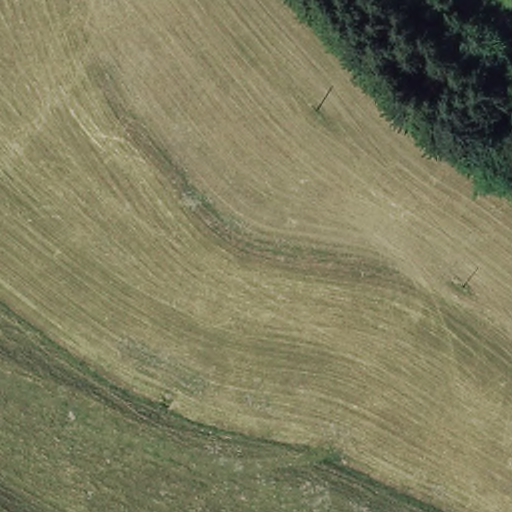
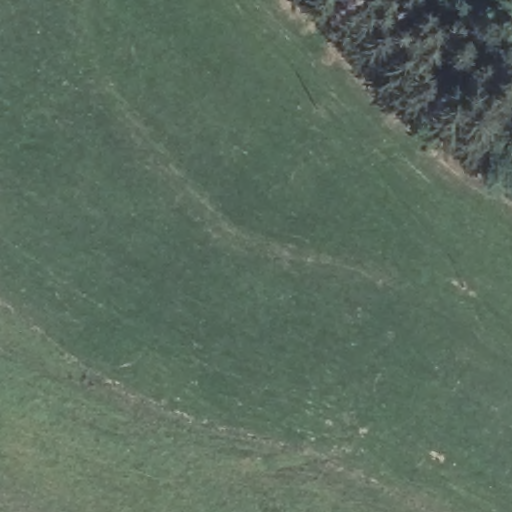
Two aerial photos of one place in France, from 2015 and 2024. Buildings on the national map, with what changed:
[]

